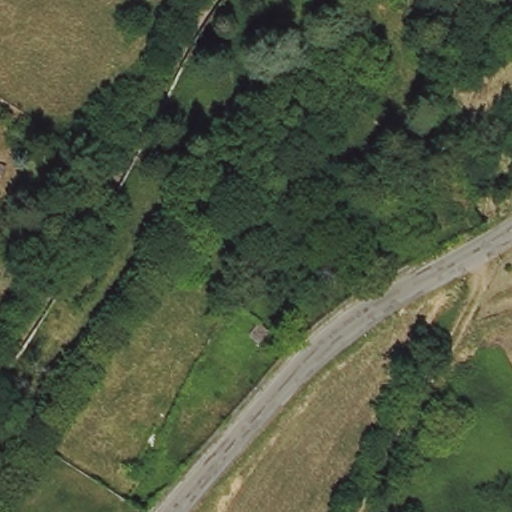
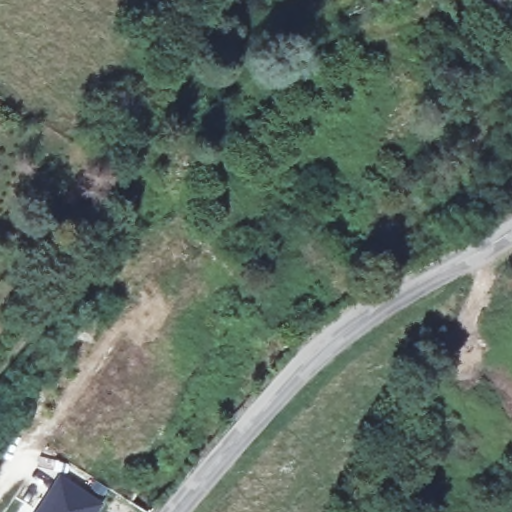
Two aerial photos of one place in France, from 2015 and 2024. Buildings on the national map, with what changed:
new [(34,512),(57,474),(102,503),(97,512),(34,512)]

